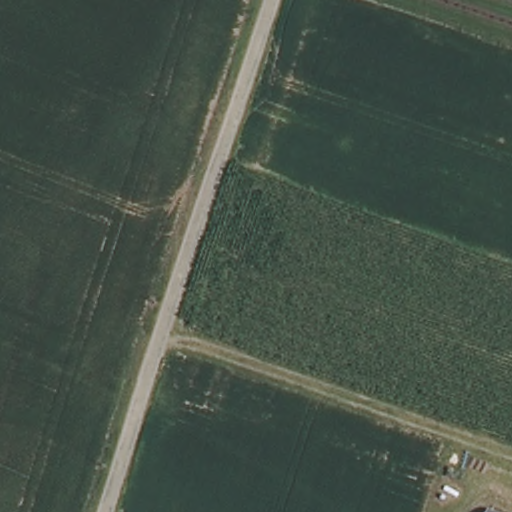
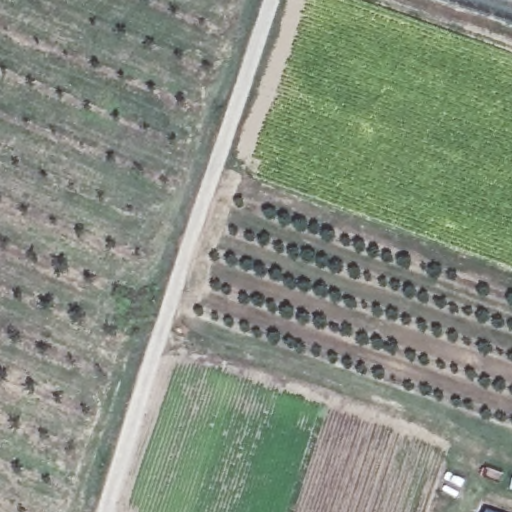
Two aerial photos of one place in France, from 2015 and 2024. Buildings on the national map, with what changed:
unchanged [(496,512),(485,512),(487,508),(496,512)]

